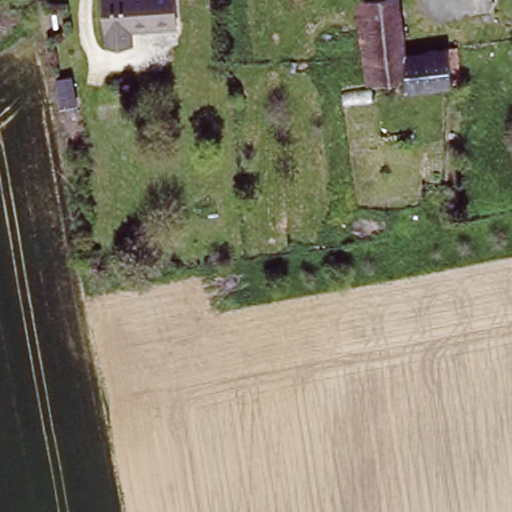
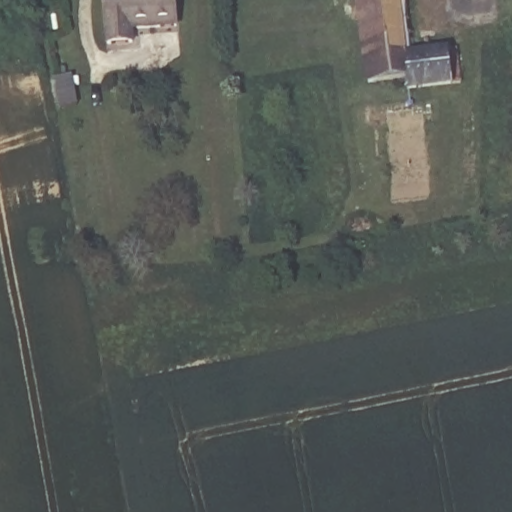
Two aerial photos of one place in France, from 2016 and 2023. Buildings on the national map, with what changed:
unchanged [(177,0),(180,26),(133,31),(135,45),(110,47),(107,0),(177,0)]
unchanged [(460,84),(407,90),(407,79),(367,82),(360,0),(399,0),(404,54),(457,50),(460,84)]

